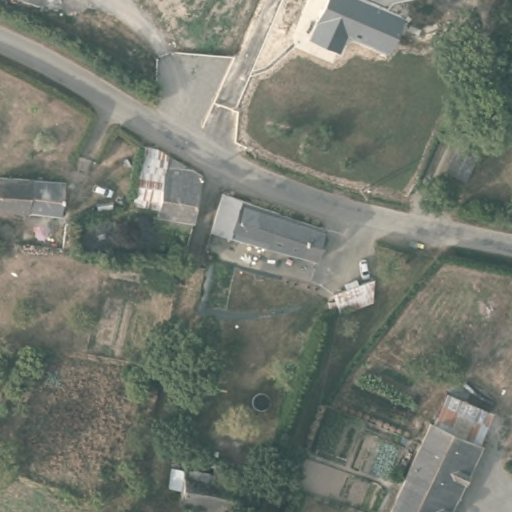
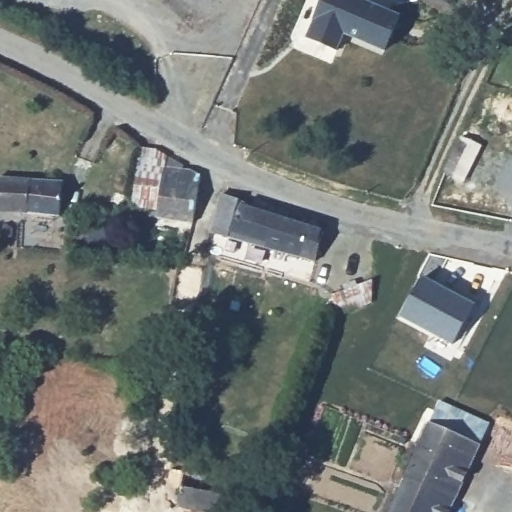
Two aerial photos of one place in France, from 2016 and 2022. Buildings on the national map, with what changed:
unchanged [(343,35),(336,50),(306,40),(322,0),(356,0),(399,17),(385,52),(343,35)]
unchanged [(462,134),(482,142),(465,177),(446,167),(462,134)]
unchanged [(130,208),(143,142),(169,157),(157,214),(130,208)]
unchanged [(191,226),(156,218),(157,214),(169,157),(187,166),(204,175),(191,226)]
unchanged [(0,209),(2,174),(67,179),(66,214),(0,209)]
unchanged [(317,260),(211,231),(223,187),(329,224),(317,260)]
new [(423,276),(475,303),(452,346),(401,317),(423,276)]
unchanged [(368,308),(336,322),(327,303),(337,298),(336,293),(348,288),(352,292),(368,285),(368,308)]
unchanged [(446,389),(491,408),(476,440),(433,419),(446,389)]
unchanged [(476,440),(479,441),(447,512),(390,512),(433,419),(476,440)]
unchanged [(179,505),(180,490),(168,488),(170,466),(184,467),(187,451),(223,457),(221,476),(262,484),(255,512),(218,512),(179,505)]

